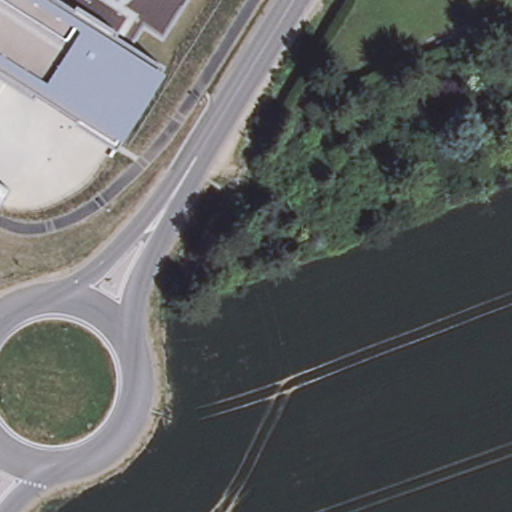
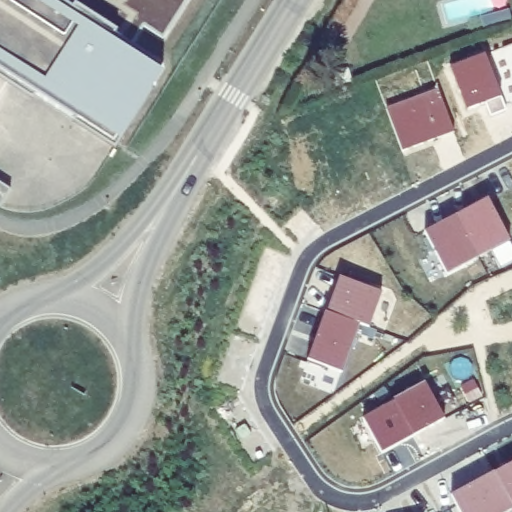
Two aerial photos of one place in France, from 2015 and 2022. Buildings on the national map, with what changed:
unchanged [(147,26),(135,45),(167,66),(117,143),(0,69),(0,0),(190,0),(166,38),(147,26)]
new [(512,93),(465,109),(450,66),(512,43),(512,93)]
new [(436,87),(452,130),(400,149),(384,107),(436,87)]
new [(4,210),(0,208),(0,184),(14,193),(4,210)]
new [(485,196),(507,238),(475,255),(453,213),(485,196)]
new [(453,213),(475,255),(444,272),(422,230),(453,213)]
new [(337,274),(346,277),(349,270),(367,277),(365,284),(379,289),(366,325),(359,323),(324,309),(337,274)]
new [(359,323),(342,370),(307,357),(324,309),(359,323)]
new [(512,352),(512,357),(511,352),(512,352)]
new [(422,381),(442,416),(410,433),(391,397),(422,381)]
new [(392,399),(410,433),(379,451),(360,416),(392,399)]
new [(512,504),(494,471),(512,461),(512,504)]
new [(494,471),(512,504),(512,507),(502,512),(461,512),(450,494),(494,470),(494,471)]

